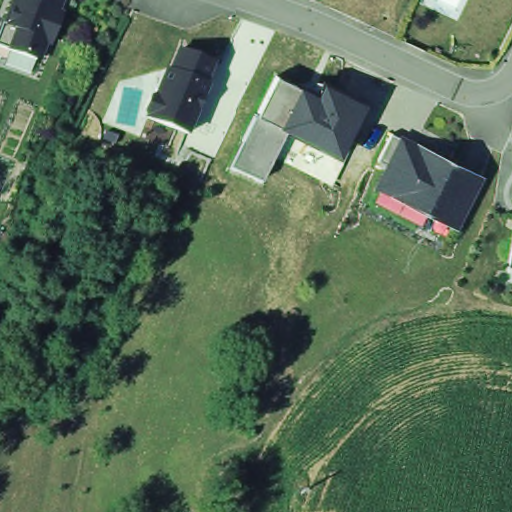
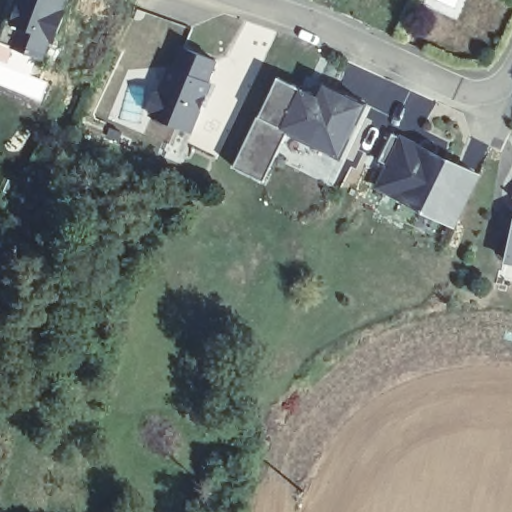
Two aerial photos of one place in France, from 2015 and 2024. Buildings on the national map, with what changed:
unchanged [(49,44),(37,73),(10,61),(15,48),(2,43),(19,0),(70,0),(56,46),(49,44)]
unchanged [(152,91),(163,97),(180,48),(217,66),(193,131),(146,110),(152,91)]
unchanged [(301,90),(317,98),(323,84),(366,107),(340,161),(290,138),(268,186),(232,168),(280,78),(301,90)]
unchanged [(387,168),(380,163),(392,134),(402,139),(403,134),(482,175),(457,229),(379,190),(387,168)]
unchanged [(507,263),(512,240),(512,264),(507,263)]

